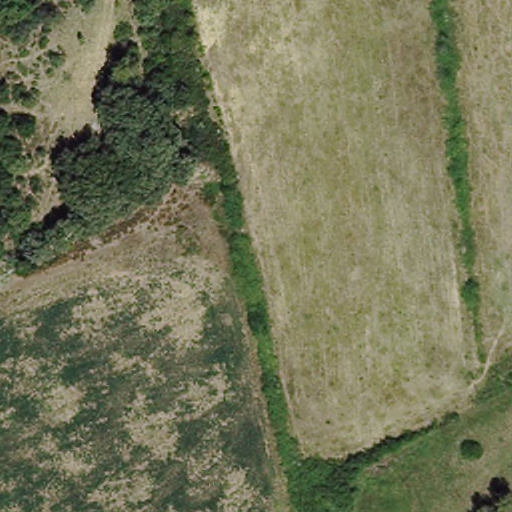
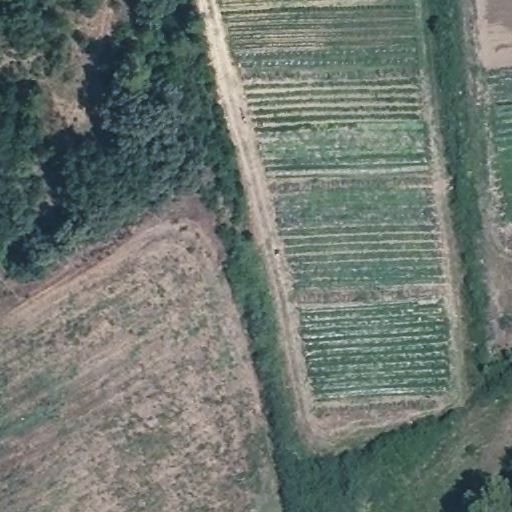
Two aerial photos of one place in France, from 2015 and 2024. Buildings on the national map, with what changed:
[]

